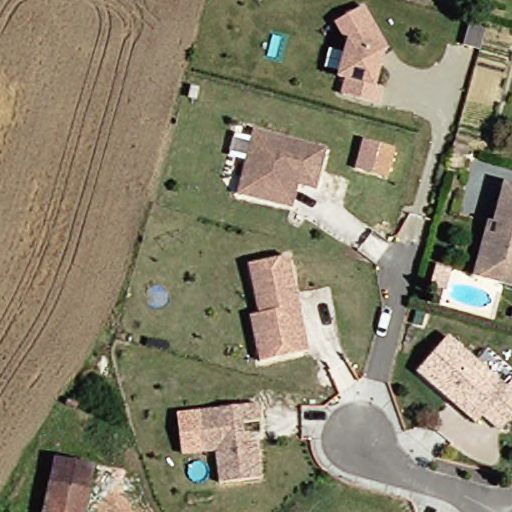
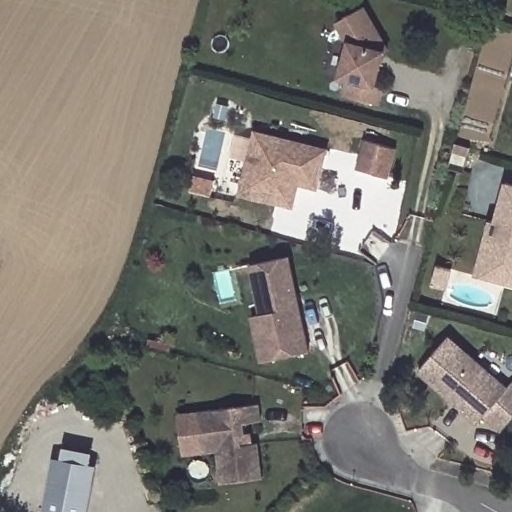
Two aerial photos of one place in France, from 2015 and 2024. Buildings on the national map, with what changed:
unchanged [(380,63),(375,84),(382,86),(377,103),(355,97),(343,94),(348,78),(340,76),(349,42),(337,21),(364,6),(388,49),(383,52),(381,61),(380,63)]
unchanged [(280,204),(276,203),(239,193),(255,130),(320,147),(327,149),(317,189),(299,184),(293,207),(280,204)]
unchanged [(354,169),(362,137),(398,146),(390,178),(354,169)]
unchanged [(468,154),(453,150),(454,146),(455,143),(470,147),(468,154)]
unchanged [(488,222),(493,223),(503,183),(512,186),(512,286),(488,280),(475,276),(481,252),(488,222)]
unchanged [(260,315),(250,265),(288,257),(296,294),(298,304),(308,352),(261,362),(257,345),(251,317),(260,315)]
unchanged [(445,290),(431,286),(437,265),(451,269),(445,290)]
unchanged [(448,337),(507,388),(511,383),(512,384),(512,419),(501,431),(485,416),(478,423),(458,406),(451,400),(418,371),(448,337)]
unchanged [(267,484),(225,488),(222,456),(210,458),(205,416),(264,409),(266,426),(249,428),(250,439),(256,438),(257,449),(262,449),(267,484)]
unchanged [(55,449),(95,457),(84,512),(44,512),(55,449)]

